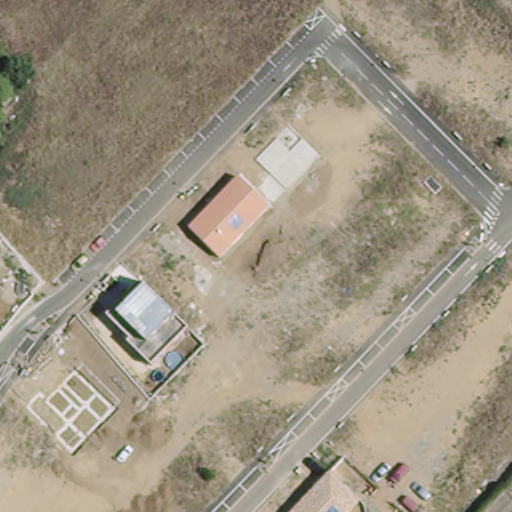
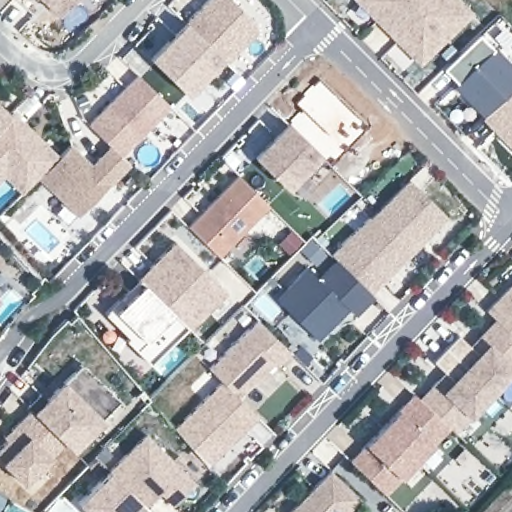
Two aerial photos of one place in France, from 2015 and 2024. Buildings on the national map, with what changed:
new [(59,15),(47,6),(46,8),(37,0),(72,0),(59,15)]
new [(213,0),(227,0),(231,3),(254,26),(234,48),(241,54),(228,68),(186,28),(213,0)]
new [(364,0),(451,0),(467,16),(446,38),(442,35),(414,63),(358,6),(364,0)]
new [(201,112),(188,100),(151,65),(187,28),(223,63),(205,82),(218,94),(201,112)]
new [(512,71),(512,88),(483,117),(452,86),(456,82),(443,68),(476,35),(512,71)]
new [(170,106),(122,158),(129,165),(79,217),(39,178),(58,156),(70,145),(92,166),(111,147),(87,126),(138,75),(170,106)]
new [(483,117),(512,88),(512,148),(483,117)]
new [(10,114),(0,124),(0,105),(10,114)]
new [(39,178),(32,185),(13,167),(0,180),(0,124),(10,114),(58,156),(39,178)]
unchanged [(285,128),(316,158),(282,192),(252,162),(285,128)]
demolished [(283,327),(290,321),(279,309),(288,301),(298,311),(314,296),(315,297),(331,281),(333,282),(347,269),(327,246),(368,209),(362,204),(371,196),(376,201),(409,172),(444,210),(295,353),(292,351),(277,335),(285,329),(283,327)]
unchanged [(190,225),(239,174),(270,205),(219,256),(190,225)]
new [(448,217),(372,293),(375,296),(356,316),(349,309),(318,340),(275,299),(307,267),(319,277),(336,259),(332,255),(409,180),(448,217)]
new [(290,250),(279,240),(288,231),(298,241),(290,250)]
new [(174,241),(227,292),(191,330),(187,327),(172,313),(143,284),(138,279),(174,241)]
unchanged [(138,279),(143,284),(172,313),(187,327),(150,364),(126,341),(130,338),(105,312),(138,279)]
new [(496,325),(485,315),(512,286),(512,340),(496,325)]
unchanged [(258,317),(291,349),(278,362),(275,359),(239,396),(224,381),(209,367),(258,317)]
new [(472,354),(481,345),(479,343),(496,325),(512,340),(512,374),(491,396),(445,353),(457,340),(472,354)]
new [(301,344),(313,355),(305,363),(293,352),(301,344)]
new [(437,388),(439,389),(448,380),(432,366),(445,353),(491,396),(453,437),(448,432),(420,406),(437,388)]
new [(72,364),(117,408),(110,415),(71,378),(43,407),(36,400),(72,364)]
demolished [(190,367),(217,396),(184,429),(177,426),(169,430),(156,419),(164,411),(154,402),(190,367)]
new [(36,400),(43,407),(71,378),(110,415),(68,458),(61,450),(27,417),(23,414),(36,400)]
new [(209,465),(177,429),(224,381),(239,396),(258,414),(209,465)]
unchanged [(413,399),(420,406),(448,432),(384,500),(349,467),(413,399)]
new [(0,444),(7,437),(27,417),(61,450),(20,491),(0,471),(0,451),(4,448),(0,444)]
new [(145,429),(194,477),(172,500),(158,486),(144,501),(108,466),(145,429)]
new [(108,466),(144,501),(155,512),(91,512),(77,498),(108,466)]
unchanged [(360,499),(347,512),(290,512),(330,471),(360,499)]

